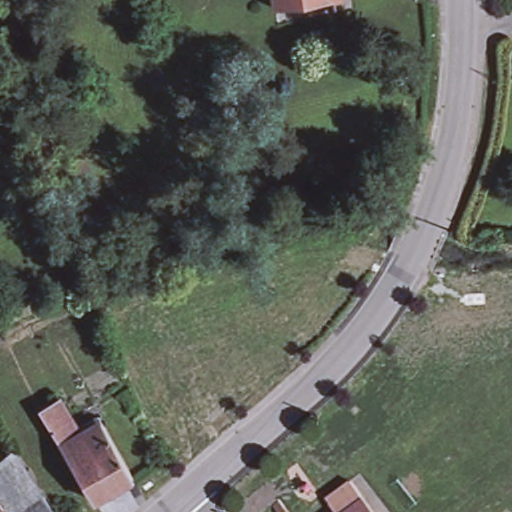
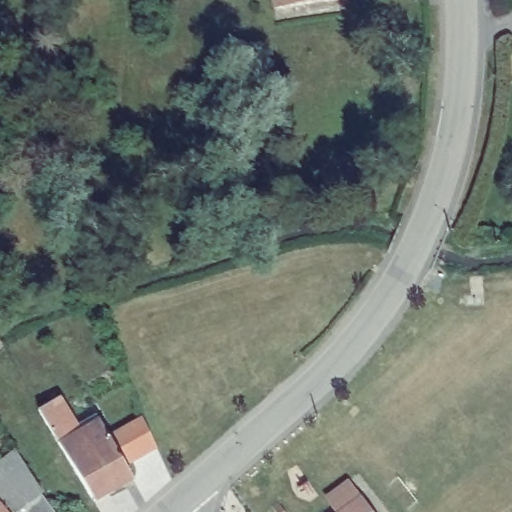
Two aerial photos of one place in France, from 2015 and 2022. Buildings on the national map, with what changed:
unchanged [(312,6),(274,9),(273,0),(346,0),(346,3),(330,4),(331,14),(313,16),(312,6)]
unchanged [(96,503),(62,446),(54,434),(40,411),(59,399),(73,422),(80,434),(102,421),(131,475),(133,479),(102,499),(96,503)]
unchanged [(0,508),(0,464),(12,454),(34,489),(51,512),(3,512),(0,508)]
unchanged [(372,512),(333,512),(358,493),(372,512)]
unchanged [(3,512),(0,512),(0,508),(3,512)]

